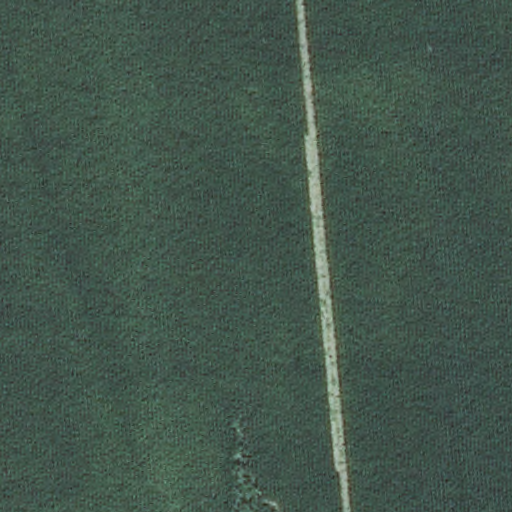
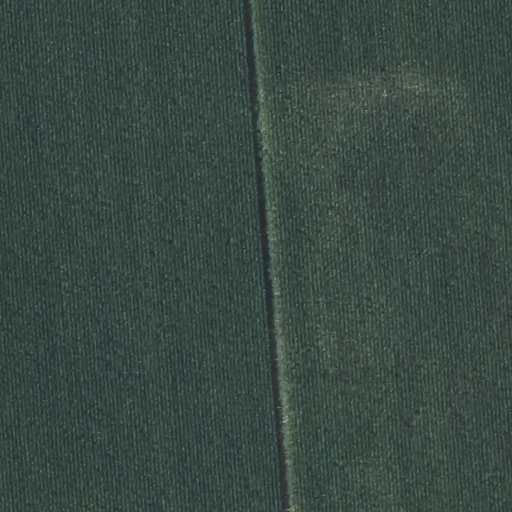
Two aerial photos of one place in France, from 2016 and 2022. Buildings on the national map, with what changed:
[]

